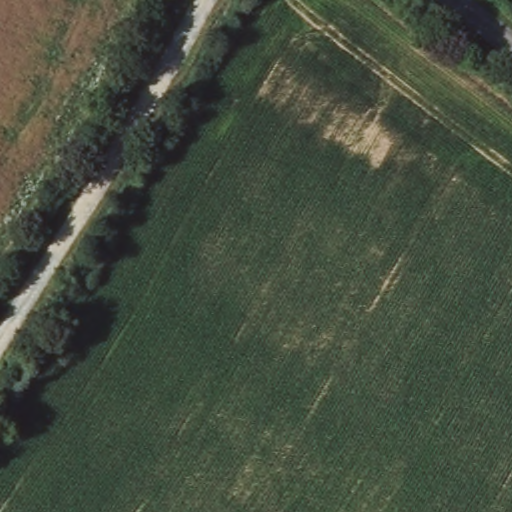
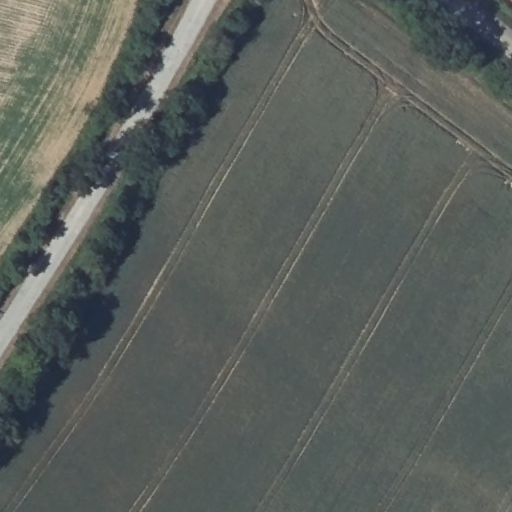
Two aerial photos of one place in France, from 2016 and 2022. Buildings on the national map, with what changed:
[]

